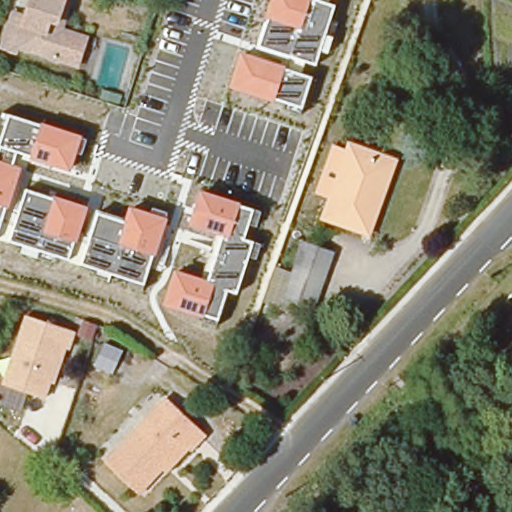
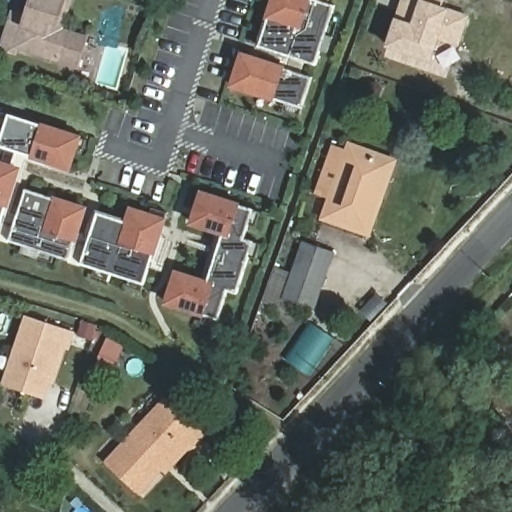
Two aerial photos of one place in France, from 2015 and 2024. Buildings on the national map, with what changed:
unchanged [(12,12),(27,16),(33,0),(72,0),(62,30),(69,31),(86,37),(77,66),(59,60),(16,48),(15,52),(0,48),(12,12)]
unchanged [(267,16),(272,0),(331,0),(330,2),(335,5),(317,64),(307,61),(303,73),(313,76),(303,108),(275,99),(231,86),(241,51),(254,56),(258,47),(267,16)]
new [(449,9),(470,16),(458,46),(438,39),(430,62),(385,46),(395,17),(402,0),(443,0),(440,5),(449,9)]
unchanged [(52,165),(50,167),(28,161),(20,186),(27,189),(54,196),(89,207),(99,211),(126,220),(131,206),(168,218),(156,255),(153,255),(144,284),(82,264),(68,260),(10,240),(0,238),(0,146),(0,145),(10,115),(42,124),(43,121),(83,135),(71,171),(52,165)]
unchanged [(332,145),(344,149),(347,141),(397,160),(382,201),(376,199),(388,166),(349,152),(348,155),(332,199),(315,193),(332,145)]
unchanged [(330,204),(332,199),(348,155),(349,152),(388,166),(376,199),(382,201),(369,236),(325,220),(330,204)]
unchanged [(217,233),(189,224),(200,191),(241,204),(254,209),(245,237),(254,241),(237,292),(229,290),(219,320),(204,316),(164,305),(175,270),(202,277),(217,233)]
unchanged [(332,257),(312,314),(284,304),(304,247),(332,257)]
unchanged [(67,348),(55,385),(51,383),(46,399),(2,383),(25,315),(76,332),(71,349),(67,348)]
unchanged [(299,355),(287,386),(263,378),(276,346),(299,355)]
unchanged [(160,468),(137,493),(107,465),(168,399),(198,428),(205,433),(189,450),(183,444),(160,468)]

